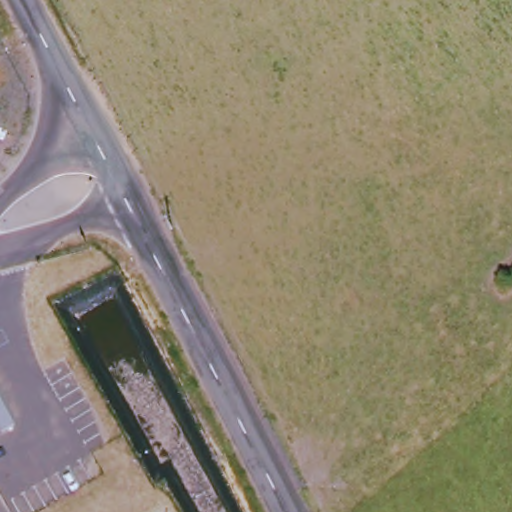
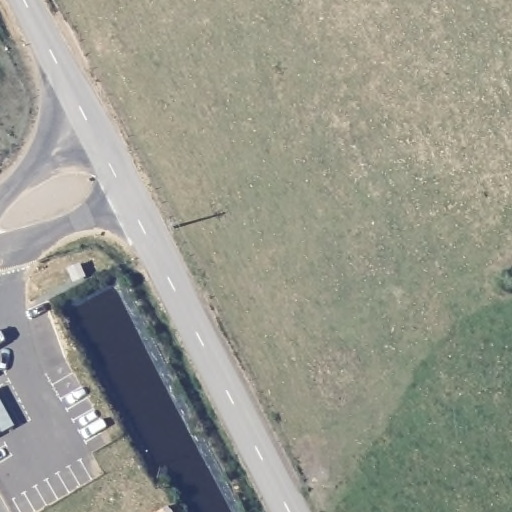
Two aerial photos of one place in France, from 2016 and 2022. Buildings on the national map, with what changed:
[]

